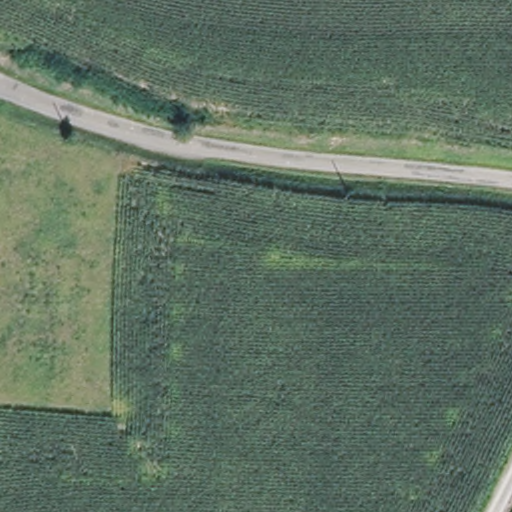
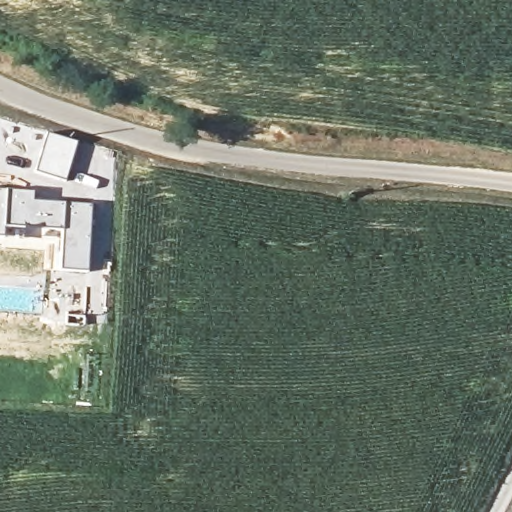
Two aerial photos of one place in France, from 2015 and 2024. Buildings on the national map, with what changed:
new [(47,132),(76,141),(65,181),(33,172),(47,132)]
new [(4,229),(2,237),(0,237),(0,189),(7,190),(4,229)]
new [(7,190),(31,191),(31,200),(90,203),(86,271),(56,270),(56,266),(55,266),(55,241),(12,236),(12,230),(4,229),(7,190)]

